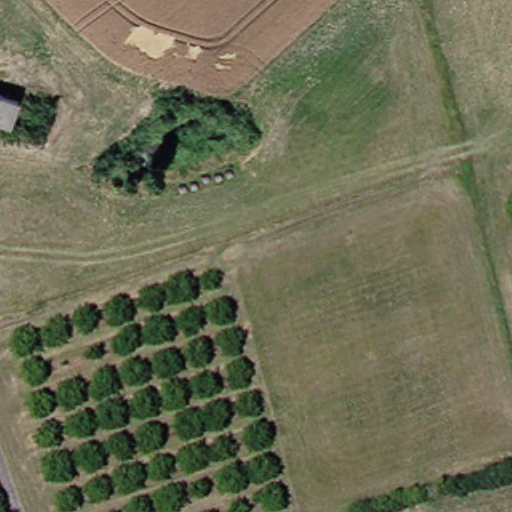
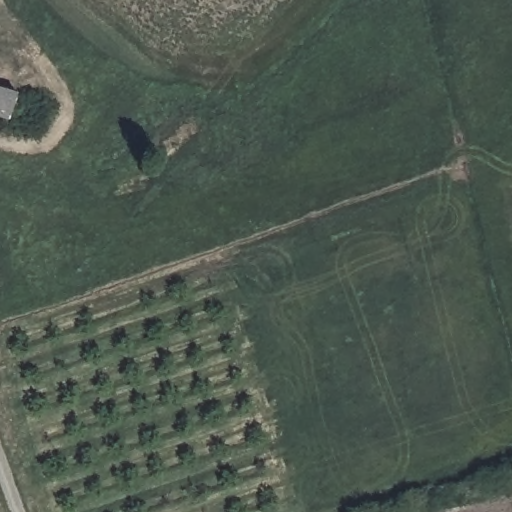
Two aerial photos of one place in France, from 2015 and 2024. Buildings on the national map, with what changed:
unchanged [(10,117),(0,113),(0,85),(19,92),(10,117)]

